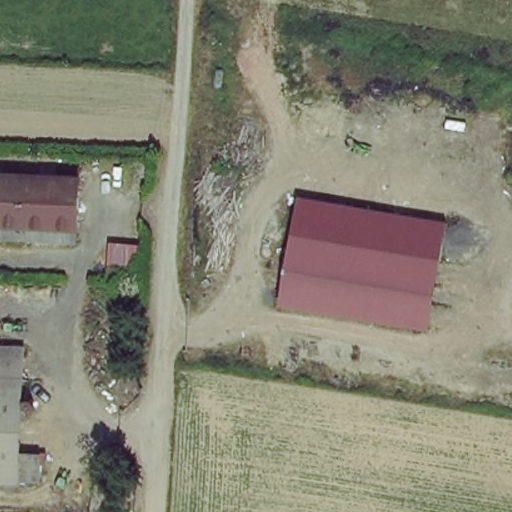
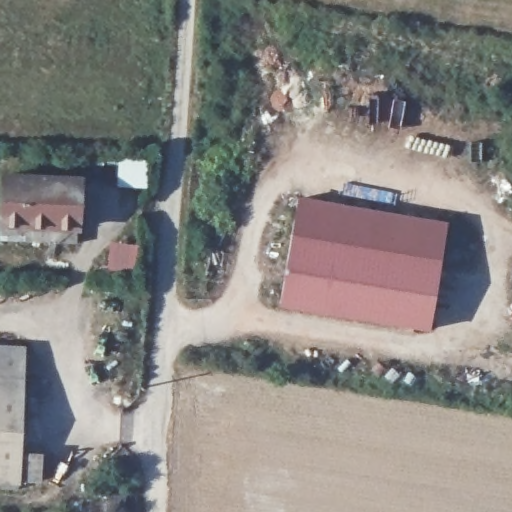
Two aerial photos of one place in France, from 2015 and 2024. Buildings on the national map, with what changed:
unchanged [(5,220),(6,168),(81,171),(81,223),(5,220)]
unchanged [(425,334),(277,306),(281,282),(290,224),(293,198),(440,225),(436,249),(428,306),(425,334)]
unchanged [(81,237),(5,235),(5,220),(81,223),(81,237)]
unchanged [(20,344),(20,372),(20,375),(0,374),(0,344),(20,344)]
unchanged [(20,479),(0,478),(0,374),(20,375),(20,479)]

